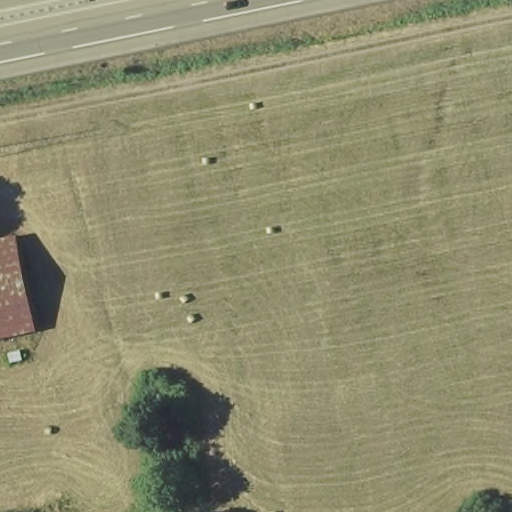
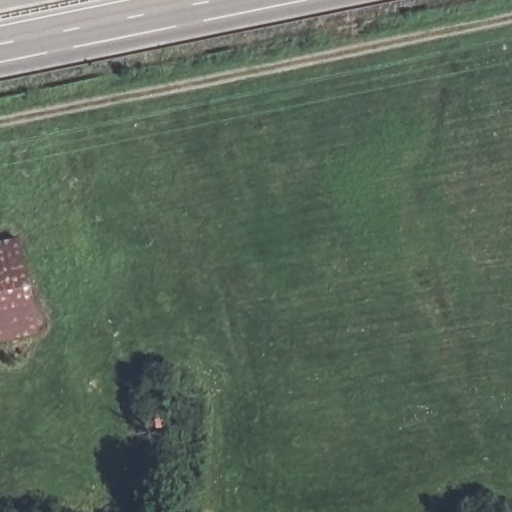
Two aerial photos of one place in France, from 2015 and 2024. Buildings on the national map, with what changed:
unchanged [(0,342),(0,244),(16,240),(35,334),(0,342)]

